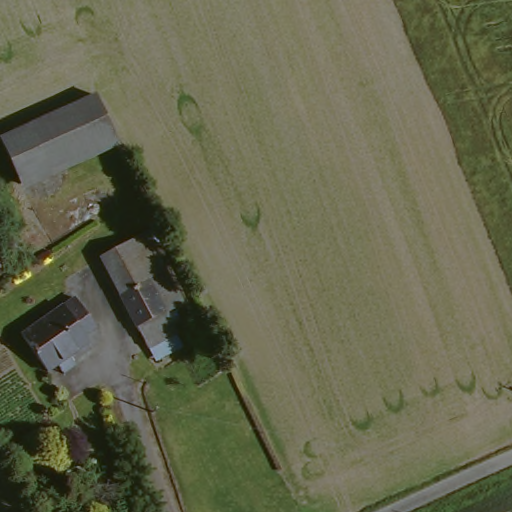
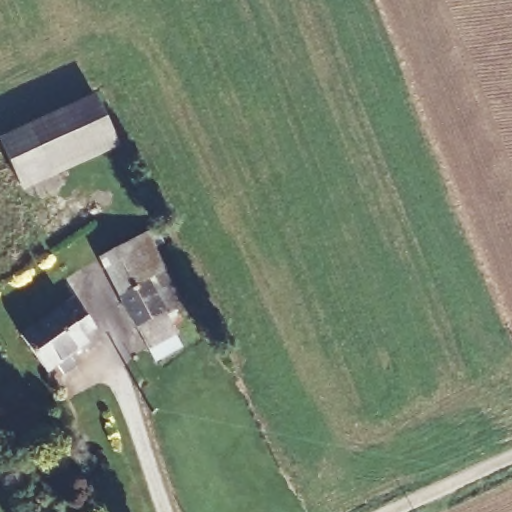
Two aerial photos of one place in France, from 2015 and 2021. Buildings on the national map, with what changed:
unchanged [(95,100),(122,152),(26,194),(1,147),(95,100)]
unchanged [(176,330),(171,343),(150,354),(120,300),(112,284),(101,262),(129,247),(125,239),(136,233),(140,240),(150,237),(160,259),(185,307),(192,320),(185,327),(176,330)]
unchanged [(82,331),(86,338),(45,365),(20,329),(71,292),(94,323),(82,331)]

